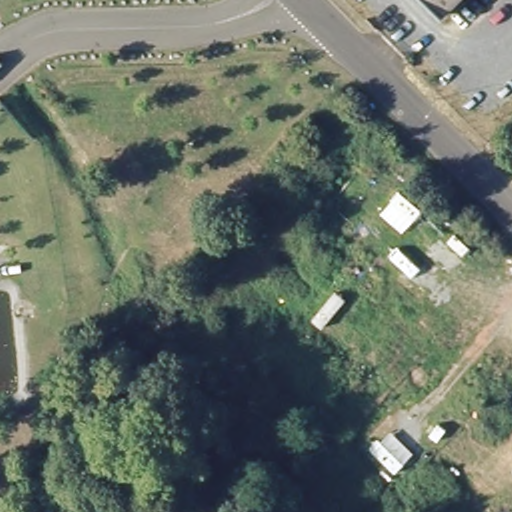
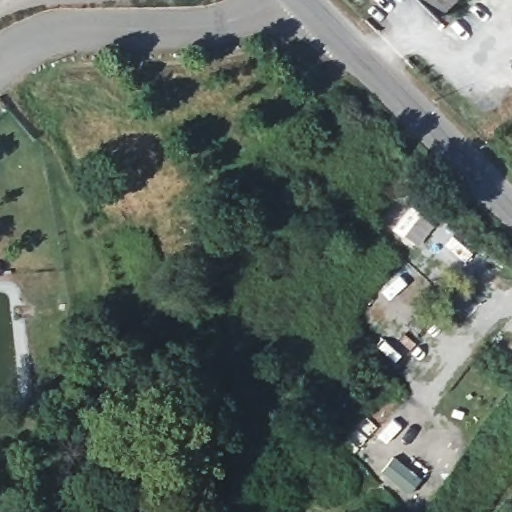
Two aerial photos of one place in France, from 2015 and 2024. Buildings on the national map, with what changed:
unchanged [(445,16),(428,0),(461,0),(445,16)]

